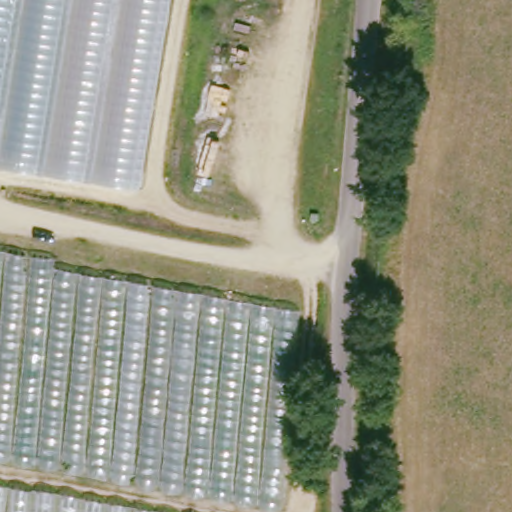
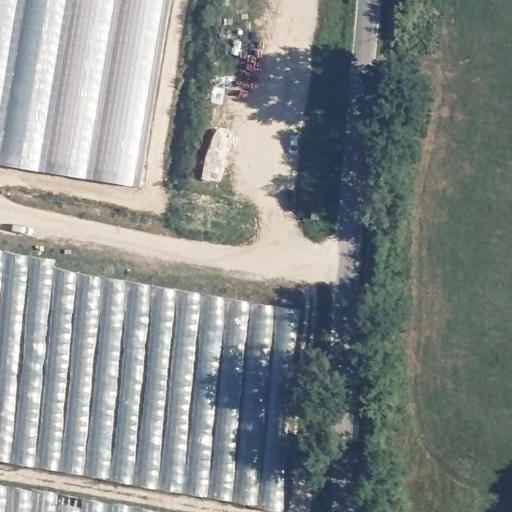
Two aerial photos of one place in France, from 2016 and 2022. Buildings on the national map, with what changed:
unchanged [(130,185),(0,163),(0,0),(160,0),(130,185)]
unchanged [(268,508),(0,463),(0,254),(291,305),(268,508)]
unchanged [(0,512),(0,485),(168,512),(0,512)]

